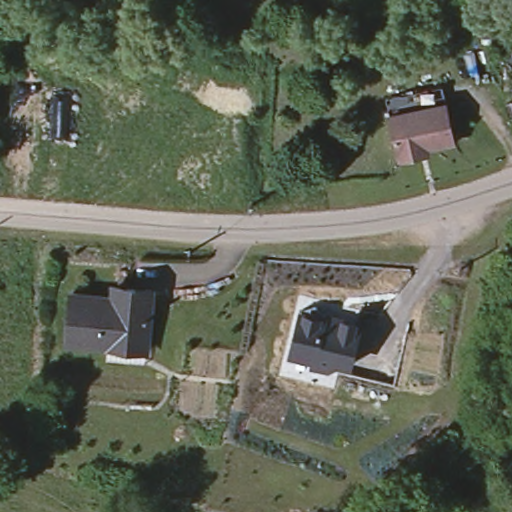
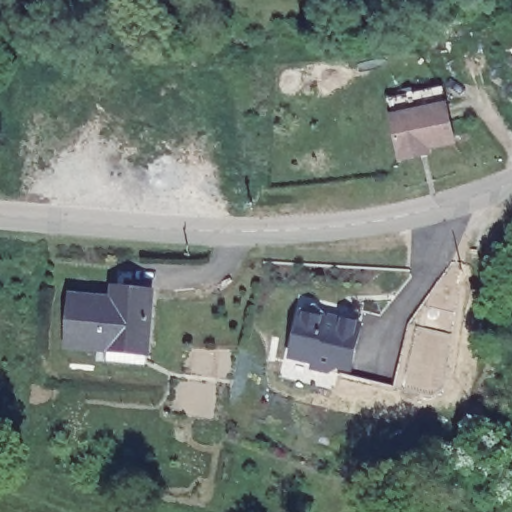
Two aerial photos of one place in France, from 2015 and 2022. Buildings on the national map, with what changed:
unchanged [(444,92),(447,110),(390,122),(386,104),(444,92)]
unchanged [(421,162),(400,167),(390,122),(447,110),(455,149),(429,155),(430,161),(421,162)]
unchanged [(110,287),(128,289),(152,292),(147,351),(67,343),(71,295),(109,299),(110,287)]
unchanged [(328,312),(322,338),(334,341),(339,319),(360,324),(350,367),(337,365),(329,367),(322,367),(317,363),(314,360),(291,355),(301,307),(315,302),(328,312)]

